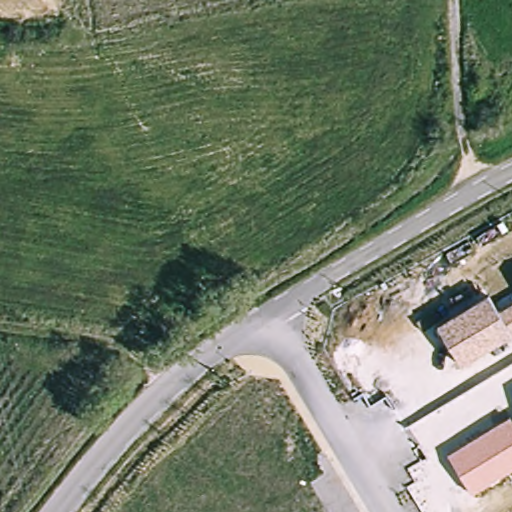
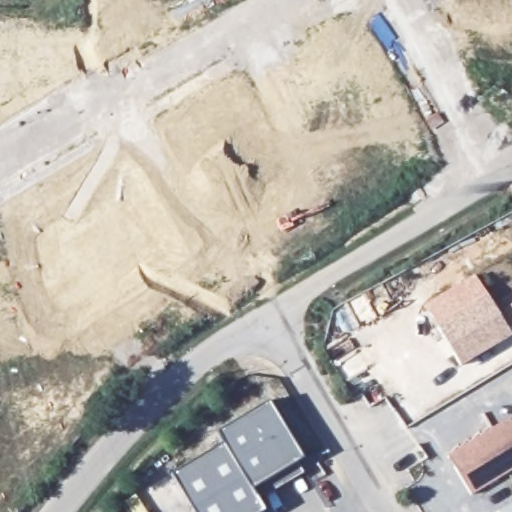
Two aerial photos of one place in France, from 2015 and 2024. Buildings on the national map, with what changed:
unchanged [(460,365),(439,327),(488,296),(496,310),(512,300),(512,333),(460,365)]
new [(223,443),(217,432),(267,402),(302,458),(294,463),(300,472),(256,498),(263,510),(260,512),(193,512),(170,475),(223,443)]
unchanged [(475,495),(449,457),(510,417),(512,421),(512,470),(475,495)]

